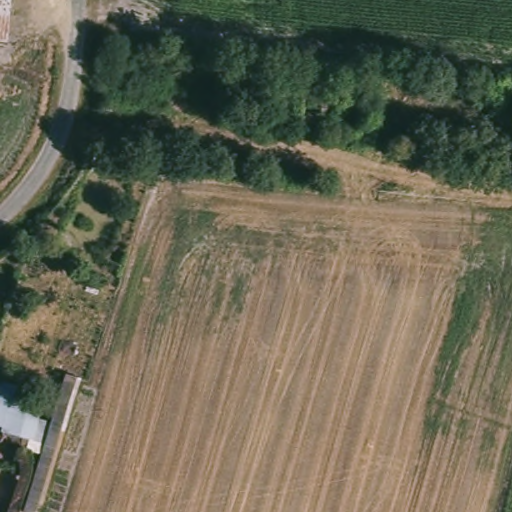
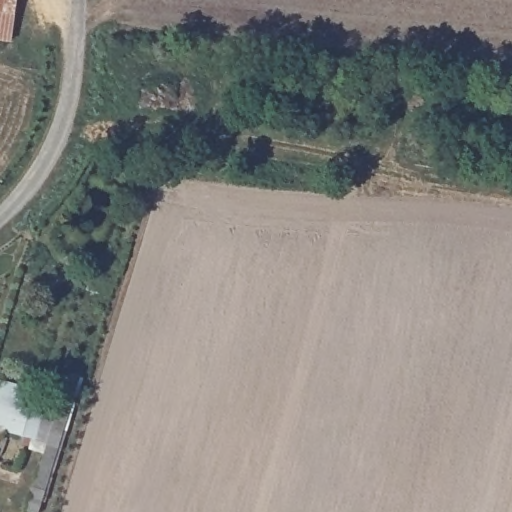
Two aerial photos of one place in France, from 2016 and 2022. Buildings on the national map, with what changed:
unchanged [(10,46),(0,45),(0,0),(13,0),(10,46)]
unchanged [(24,512),(65,375),(80,379),(41,512),(24,512)]
unchanged [(34,441),(0,432),(2,426),(0,425),(0,383),(12,386),(8,402),(42,411),(34,441)]

